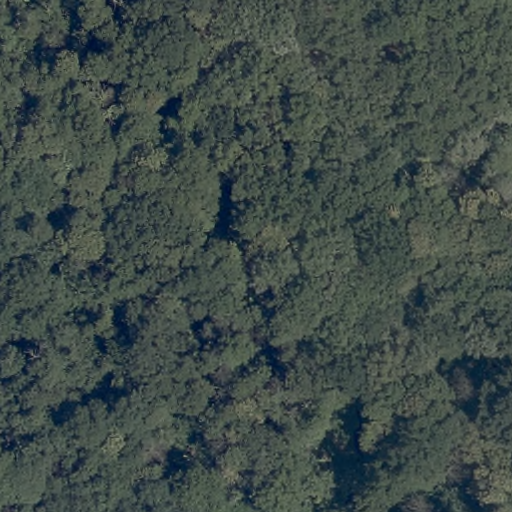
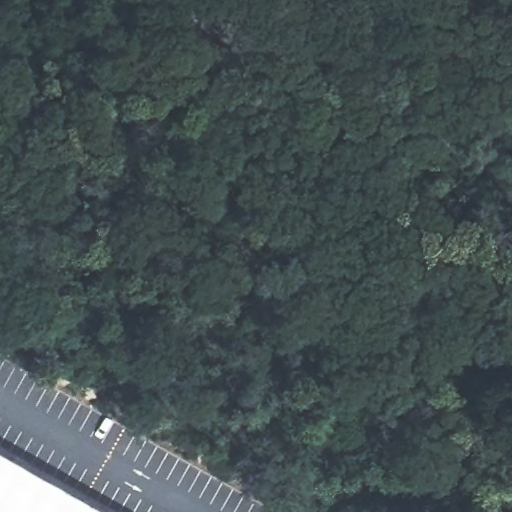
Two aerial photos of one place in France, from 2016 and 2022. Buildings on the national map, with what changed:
new [(0,512),(0,451),(108,512),(0,512)]

